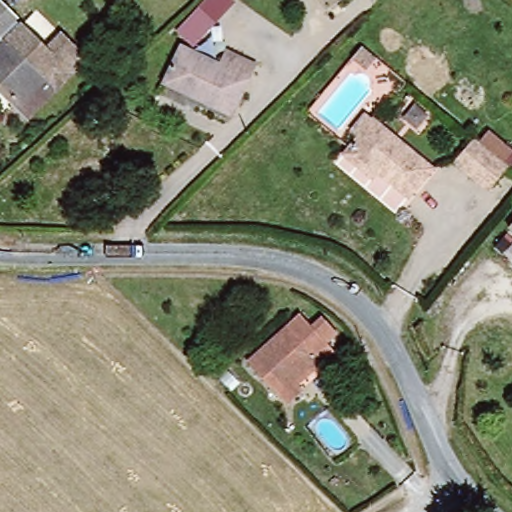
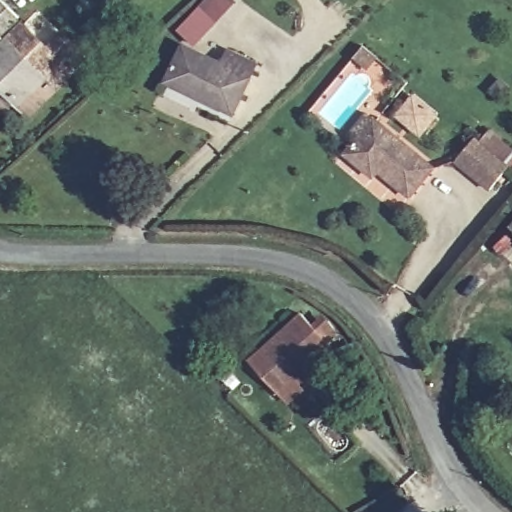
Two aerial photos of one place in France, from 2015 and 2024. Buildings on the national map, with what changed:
unchanged [(85,64),(24,118),(0,90),(0,0),(5,0),(21,18),(0,36),(6,41),(23,27),(46,53),(62,39),(85,64)]
unchanged [(164,82),(181,48),(172,39),(197,6),(214,21),(191,49),(215,61),(223,45),(258,61),(250,78),(233,115),(164,82)]
unchanged [(370,174),(343,152),(371,115),(426,159),(405,188),(376,166),(370,174)]
unchanged [(490,190),(475,180),(455,160),(474,139),(509,166),(490,190)]
unchanged [(512,228),(512,231),(510,229),(512,228)]
unchanged [(275,392),(248,359),(306,311),(334,344),(275,392)]

